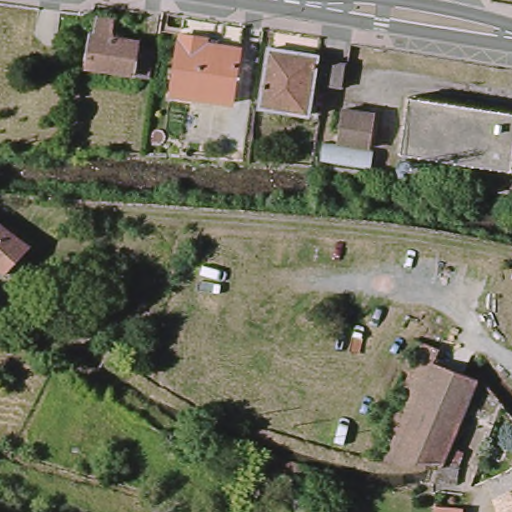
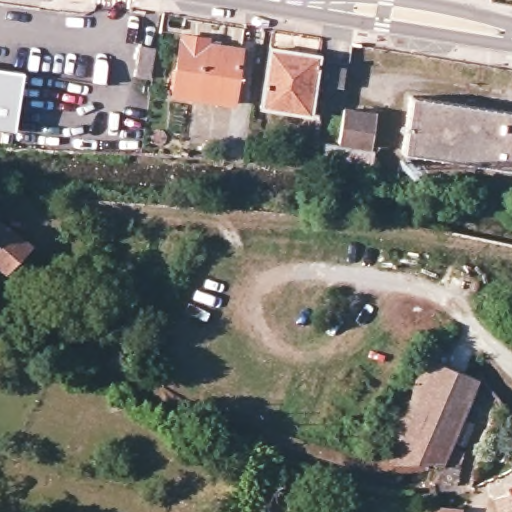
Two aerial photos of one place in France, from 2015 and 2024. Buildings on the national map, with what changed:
demolished [(131,72),(130,75),(83,66),(91,30),(94,31),(97,18),(113,21),(111,35),(121,36),(124,36),(126,37),(128,37),(131,38),(133,38),(137,40),(136,44),(147,46),(142,75),(131,72)]
unchanged [(238,92),(184,85),(190,37),(246,44),(238,92)]
unchanged [(261,106),(269,46),(316,52),(316,55),(332,57),(352,60),(348,87),(328,85),(314,83),(309,112),(261,106)]
new [(13,129),(0,127),(0,69),(22,72),(13,129)]
unchanged [(489,162),(400,150),(409,94),(499,107),(489,162)]
unchanged [(511,166),(489,162),(499,107),(512,109),(512,159),(511,166)]
unchanged [(373,145),(340,141),(345,109),(378,114),(373,145)]
unchanged [(370,167),(322,161),(324,145),(373,151),(370,167)]
unchanged [(5,273),(0,269),(0,224),(25,244),(5,273)]
unchanged [(441,463),(394,465),(366,461),(421,340),(444,350),(444,351),(439,365),(463,376),(477,381),(471,393),(441,463)]
unchanged [(503,512),(499,500),(509,497),(512,496),(512,512),(503,512)]
unchanged [(438,512),(439,507),(464,510),(464,512),(438,512)]

